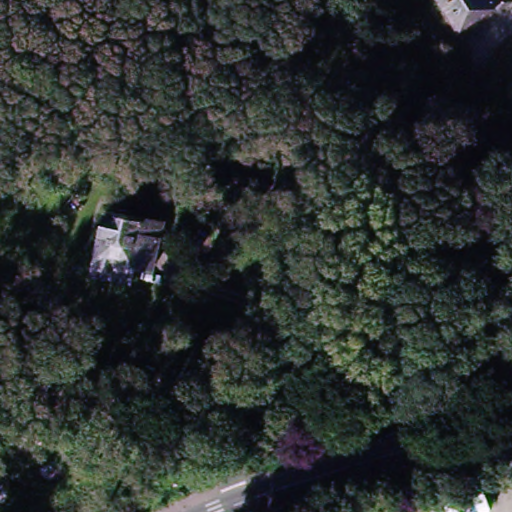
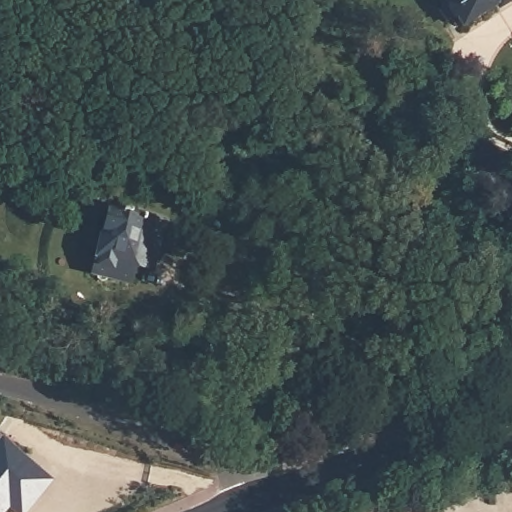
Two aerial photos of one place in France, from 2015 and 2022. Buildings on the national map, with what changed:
unchanged [(438,0),(492,0),(453,24),(438,0)]
unchanged [(159,224),(149,270),(134,266),(130,281),(93,272),(108,211),(159,224)]
new [(19,472),(42,492),(28,512),(17,512),(10,507),(5,512),(0,512),(0,446),(3,442),(27,462),(19,472)]

